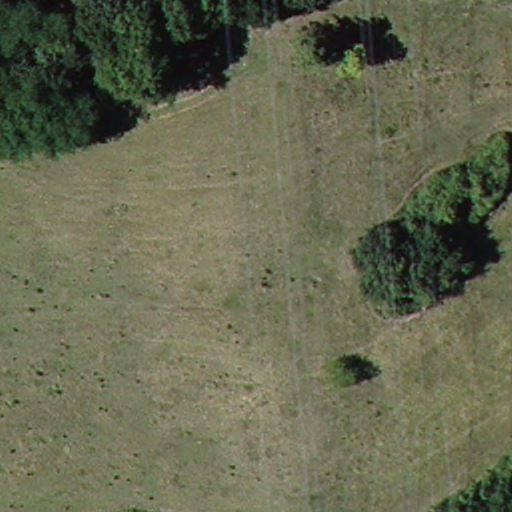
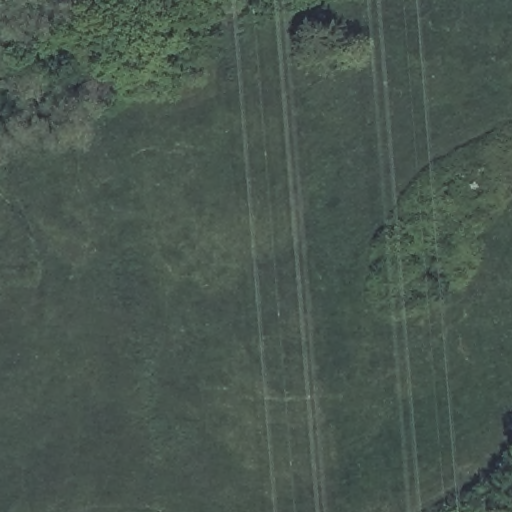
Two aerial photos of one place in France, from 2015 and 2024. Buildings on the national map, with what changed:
unchanged [(169,61),(165,36),(190,35),(191,60),(169,61)]

